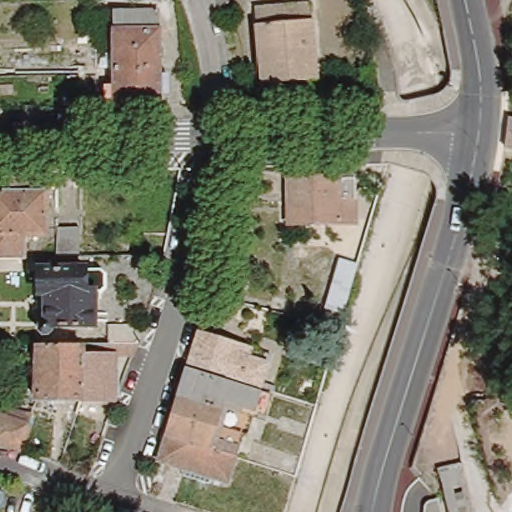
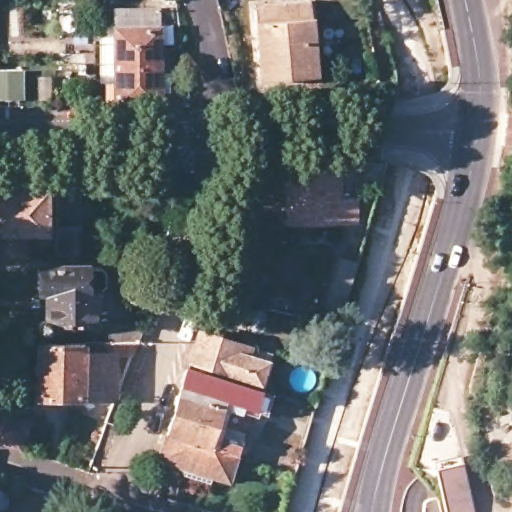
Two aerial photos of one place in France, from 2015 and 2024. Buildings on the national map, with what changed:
unchanged [(253,64),(249,5),(306,2),(308,19),(310,77),(303,77),(262,81),(254,81),(253,64)]
unchanged [(115,12),(158,11),(159,69),(115,70),(115,12)]
unchanged [(115,85),(115,70),(159,69),(161,110),(116,110),(116,102),(107,102),(107,85),(115,85)]
new [(27,75),(28,99),(0,99),(0,75),(27,75)]
unchanged [(340,87),(351,86),(353,97),(341,98),(340,87)]
unchanged [(344,176),(344,221),(278,222),(278,201),(276,165),(285,165),(326,164),(326,177),(344,176)]
unchanged [(34,170),(35,179),(30,179),(30,192),(40,192),(41,238),(19,238),(19,261),(0,262),(0,170),(34,170)]
unchanged [(53,236),(72,236),(72,240),(73,254),(84,254),(84,265),(53,265),(53,236)]
unchanged [(321,300),(335,256),(353,261),(340,305),(321,300)]
unchanged [(48,335),(48,339),(46,340),(41,340),(39,340),(36,340),(34,337),(33,335),(33,332),(33,330),(35,328),(35,327),(42,327),(41,313),(34,314),(34,308),(33,297),(33,275),(97,275),(102,278),(102,296),(95,296),(88,297),(88,300),(88,303),(88,306),(89,319),(89,326),(89,333),(48,335)]
unchanged [(86,349),(104,348),(103,330),(139,328),(132,347),(127,361),(111,362),(109,403),(76,404),(76,363),(86,363),(86,349)]
unchanged [(265,349),(255,380),(183,358),(191,328),(265,349)]
unchanged [(76,349),(76,363),(76,404),(33,405),(32,382),(32,350),(76,349)]
unchanged [(248,405),(236,401),(227,398),(222,397),(218,395),(214,395),(209,393),(206,391),(201,390),(199,390),(193,388),(189,386),(184,385),(179,383),(175,382),(181,362),(233,379),(232,381),(241,384),(253,387),(268,391),(263,410),(248,405)]
unchanged [(173,387),(178,388),(183,390),(187,392),(191,393),(197,395),(199,396),(204,397),(208,398),(213,400),(216,401),(203,441),(161,428),(173,387)]
unchanged [(474,396),(480,415),(474,420),(461,425),(454,407),(474,396)]
unchanged [(17,446),(2,441),(0,441),(0,402),(5,403),(28,408),(17,446)]
unchanged [(153,455),(161,428),(203,441),(209,443),(229,449),(221,475),(216,473),(203,469),(201,476),(180,470),(174,460),(173,460),(153,455)]
unchanged [(468,512),(443,512),(441,498),(436,465),(462,461),(468,512)]
unchanged [(427,512),(427,501),(441,498),(443,512),(427,512)]

